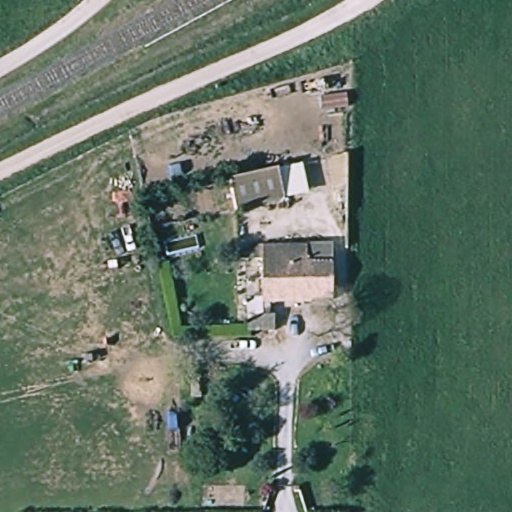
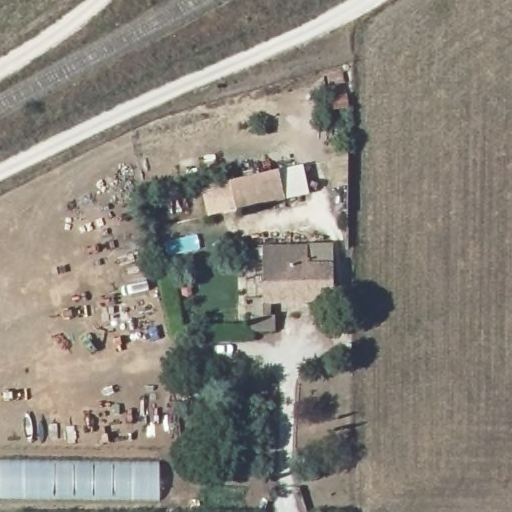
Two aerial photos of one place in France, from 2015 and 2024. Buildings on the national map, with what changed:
unchanged [(285,205),(236,213),(232,184),(279,176),(285,205)]
unchanged [(311,295),(338,295),(338,305),(315,305),(315,313),(277,314),(277,338),(251,338),(251,303),(264,303),(264,248),(311,249),(311,295)]
unchanged [(311,295),(311,249),(338,249),(338,295),(311,295)]
new [(160,500),(0,499),(0,461),(160,462),(160,500)]

